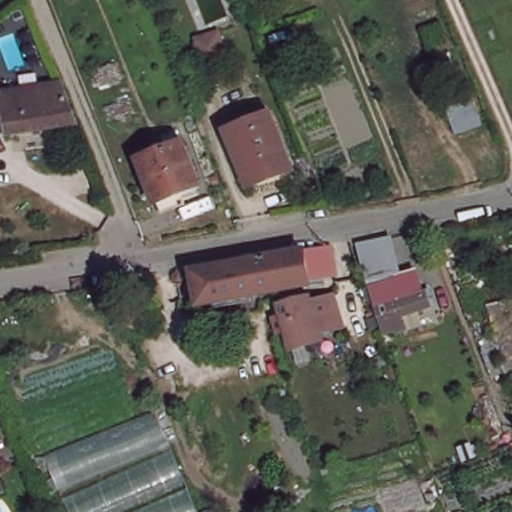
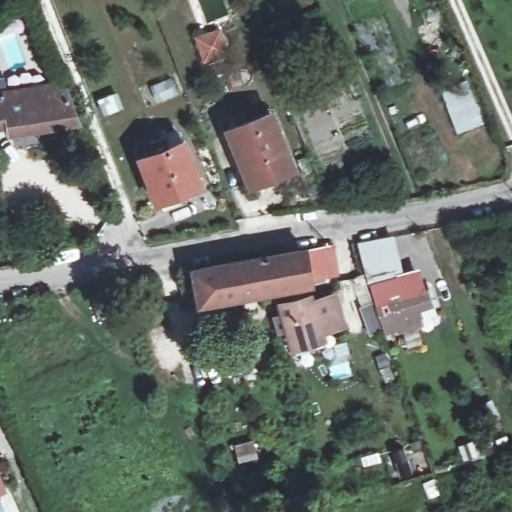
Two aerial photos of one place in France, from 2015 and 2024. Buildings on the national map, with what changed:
unchanged [(225,57),(213,61),(204,38),(215,32),(225,57)]
unchanged [(485,121),(460,133),(442,90),(467,79),(485,121)]
unchanged [(0,132),(0,98),(69,87),(84,128),(15,139),(12,130),(0,132)]
unchanged [(247,166),(240,145),(233,129),(240,127),(270,116),(267,109),(273,107),(297,168),(281,174),(254,184),(247,166)]
unchanged [(207,190),(162,208),(144,163),(159,158),(155,146),(168,142),(172,152),(190,146),(207,190)]
unchanged [(377,289),(367,247),(395,242),(404,282),(377,289)]
unchanged [(324,250),(329,280),(305,284),(272,291),(273,295),(196,309),(189,274),(300,254),(324,250)]
unchanged [(404,282),(424,277),(429,300),(382,313),(377,289),(404,282)]
unchanged [(497,295),(512,294),(512,359),(507,359),(497,295)]
unchanged [(320,350),(303,355),(302,349),(286,354),(272,310),(305,300),(306,304),(307,307),(317,304),(325,301),(335,331),(326,334),(317,337),(320,350)]
new [(155,408),(199,512),(68,512),(44,454),(155,408)]
unchanged [(0,479),(0,470),(4,478),(0,479)]

